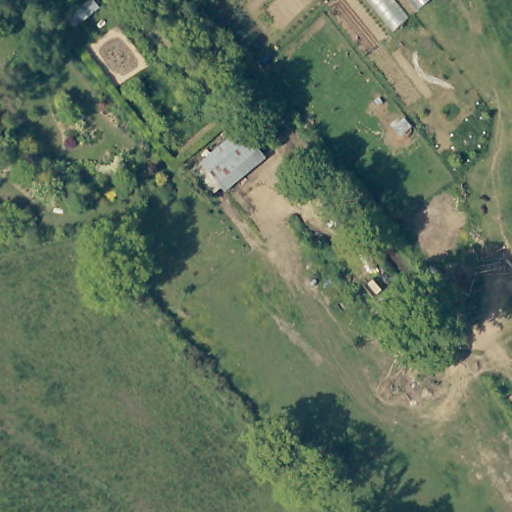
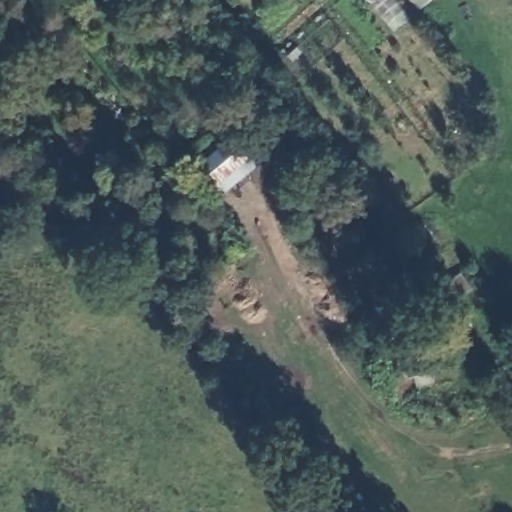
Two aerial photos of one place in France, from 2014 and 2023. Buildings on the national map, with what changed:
unchanged [(88,18),(76,27),(69,17),(80,8),(88,18)]
unchanged [(226,192),(200,162),(240,129),(267,160),(226,192)]

